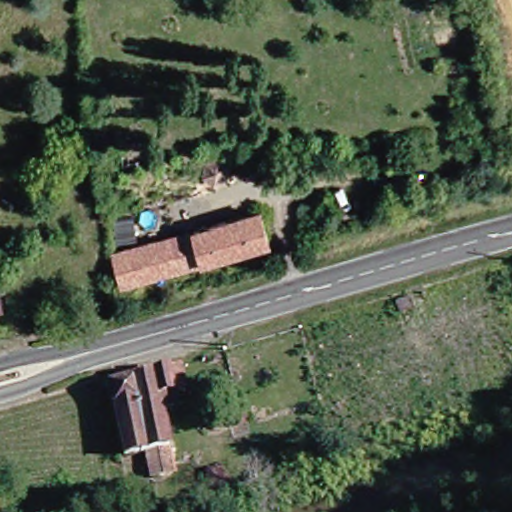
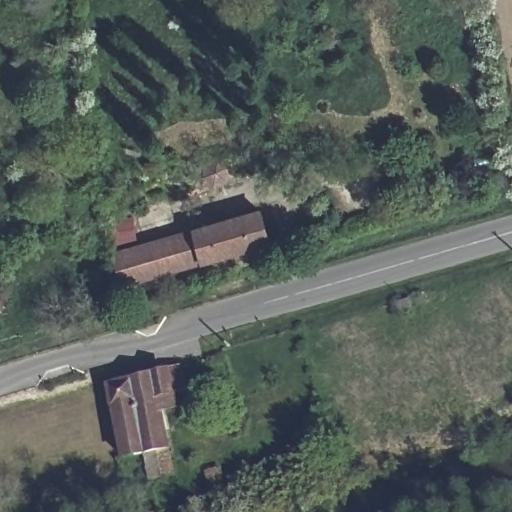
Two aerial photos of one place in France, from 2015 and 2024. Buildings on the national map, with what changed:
unchanged [(251,212),(260,244),(115,286),(106,255),(251,212)]
unchanged [(156,476),(144,480),(137,454),(117,459),(99,388),(169,370),(175,391),(147,398),(164,465),(165,473),(156,476)]
unchanged [(235,429),(226,431),(224,421),(232,419),(235,429)]
unchanged [(207,493),(201,471),(195,451),(207,447),(213,468),(219,490),(207,493)]

